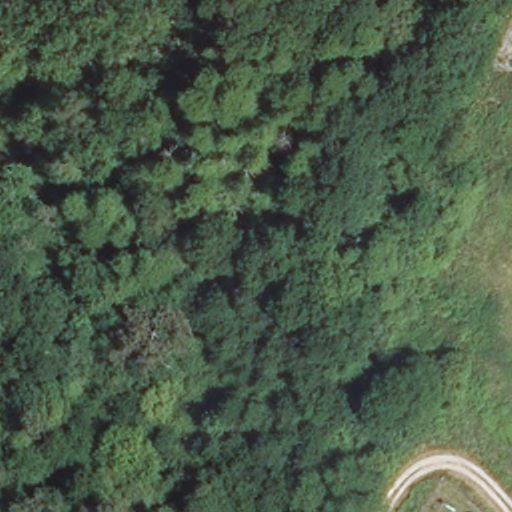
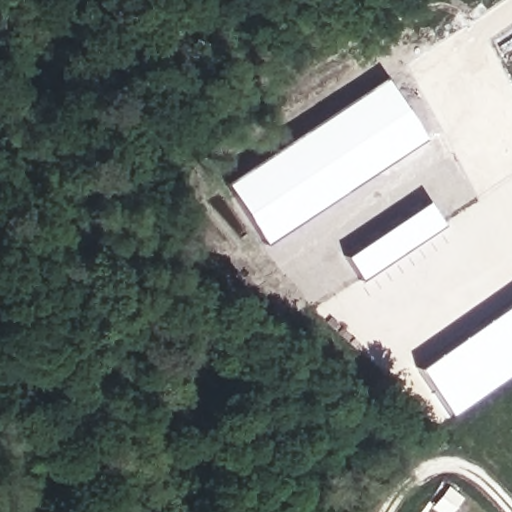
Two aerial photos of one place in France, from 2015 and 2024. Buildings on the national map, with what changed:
new [(262,244),(223,182),(383,75),(422,138),(262,244)]
new [(425,199),(442,223),(359,278),(343,255),(425,199)]
new [(450,415),(417,368),(512,301),(512,372),(450,415)]

